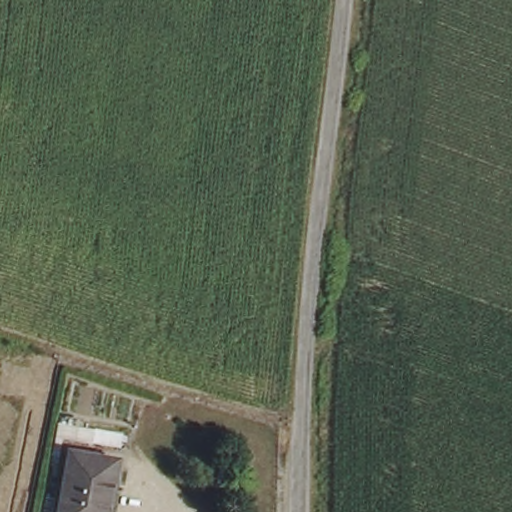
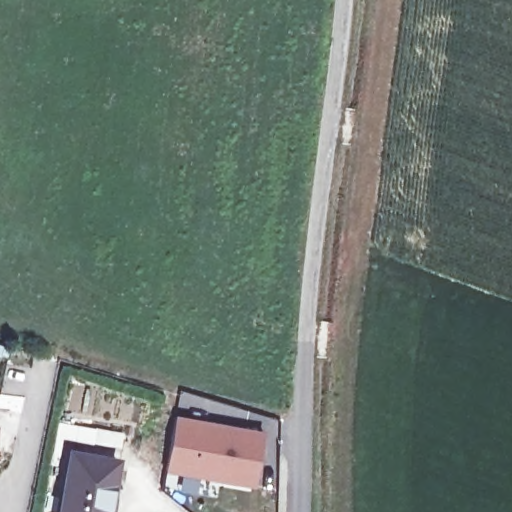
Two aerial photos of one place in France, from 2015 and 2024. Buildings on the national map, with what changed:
new [(240,486),(168,473),(177,420),(265,436),(257,475),(255,488),(240,486)]
unchanged [(116,470),(108,512),(61,512),(71,460),(116,470)]

